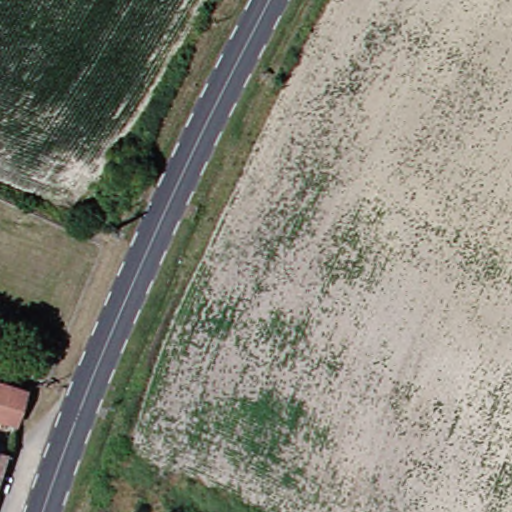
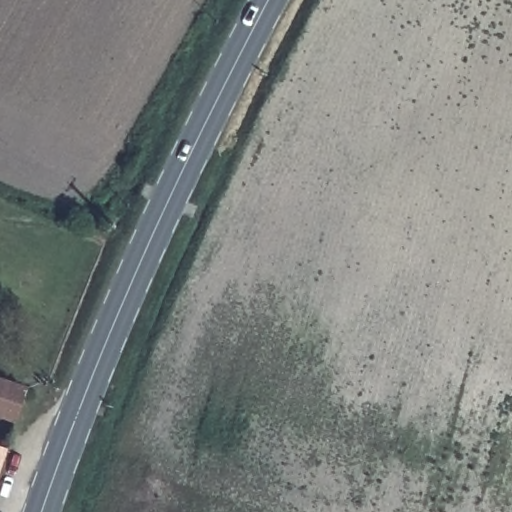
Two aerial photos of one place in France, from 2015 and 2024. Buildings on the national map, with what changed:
unchanged [(9,423),(0,420),(0,382),(19,388),(9,423)]
unchanged [(0,484),(0,451),(11,454),(0,484)]

